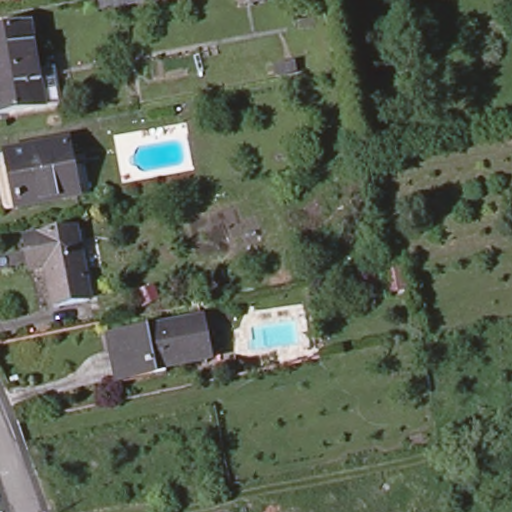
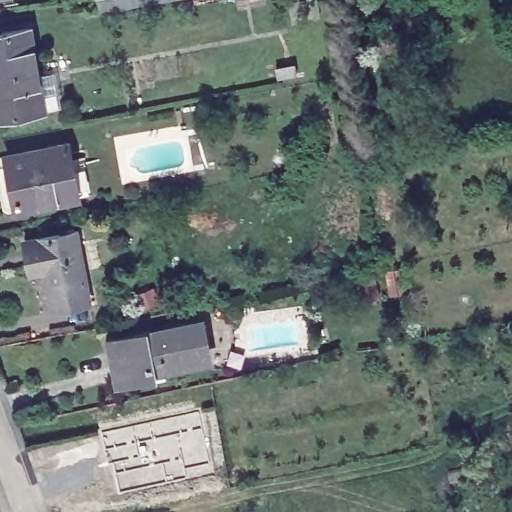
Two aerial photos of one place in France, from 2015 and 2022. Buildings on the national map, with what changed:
unchanged [(98,0),(162,0),(100,11),(98,0)]
unchanged [(237,8),(235,0),(246,0),(247,6),(237,8)]
unchanged [(315,0),(317,15),(290,21),(285,1),(288,0),(315,0)]
unchanged [(36,77),(52,75),(56,100),(7,109),(7,115),(0,116),(0,26),(27,22),(36,77)]
unchanged [(0,202),(0,165),(7,164),(5,155),(65,145),(68,164),(80,162),(85,195),(73,197),(14,207),(1,209),(0,202)]
unchanged [(27,272),(20,240),(72,230),(86,301),(50,308),(42,268),(27,272)]
unchanged [(204,316),(205,367),(110,386),(101,336),(204,316)]
new [(200,412),(210,462),(185,467),(187,479),(120,493),(113,463),(107,465),(102,432),(200,412)]

